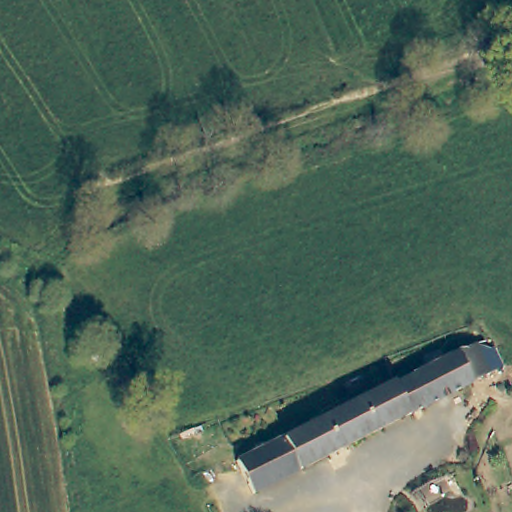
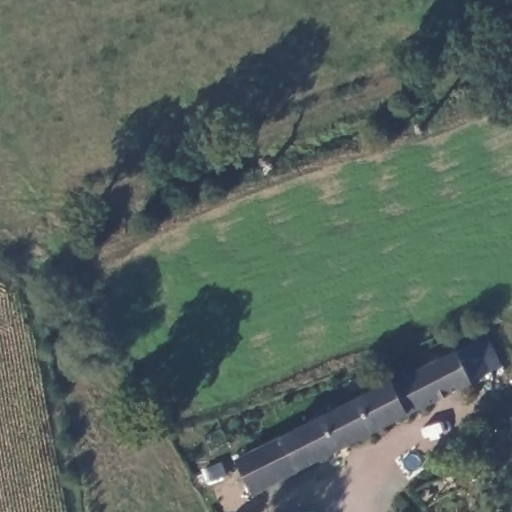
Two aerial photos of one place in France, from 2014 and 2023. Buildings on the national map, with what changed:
unchanged [(241,454),(368,395),(464,351),(475,346),(489,376),(477,381),(256,487),(241,454)]

